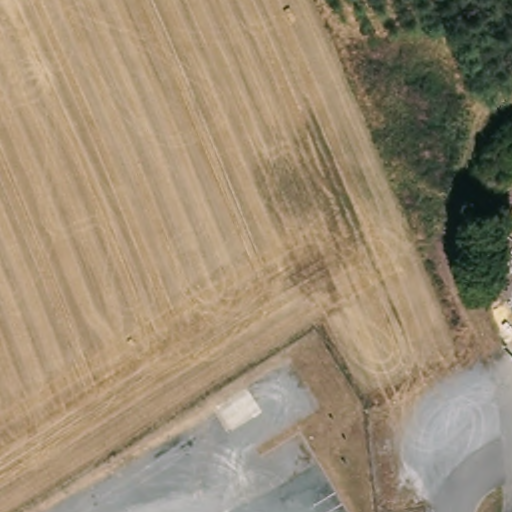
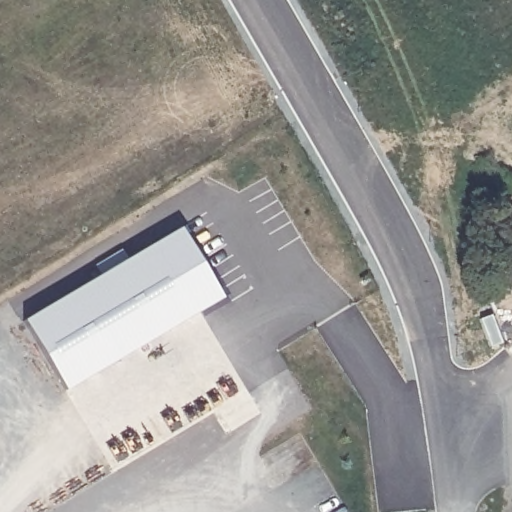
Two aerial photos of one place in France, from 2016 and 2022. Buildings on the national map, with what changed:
new [(222,298),(66,392),(23,320),(180,227),(222,298)]

